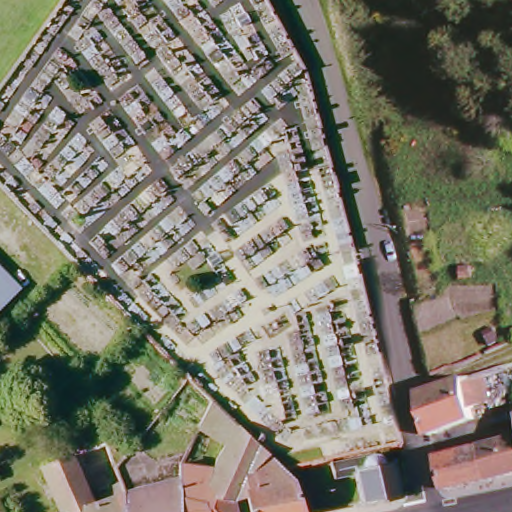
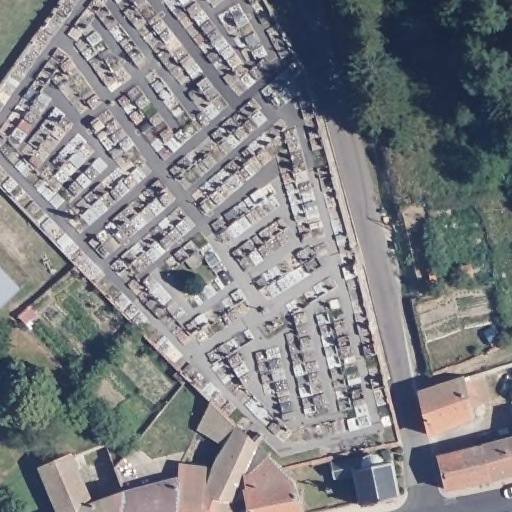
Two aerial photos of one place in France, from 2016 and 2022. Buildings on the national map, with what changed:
unchanged [(0,311),(0,273),(19,293),(0,311)]
unchanged [(482,397),(465,405),(468,415),(424,430),(413,388),(476,368),(482,397)]
unchanged [(304,511),(304,512),(247,512),(242,493),(228,494),(211,495),(209,463),(225,433),(200,409),(207,394),(233,419),(290,477),(304,511)]
unchanged [(484,485),(476,453),(512,446),(512,477),(484,485)]
unchanged [(58,509),(35,460),(64,448),(87,497),(68,504),(70,512),(49,512),(58,509)]
unchanged [(484,485),(439,493),(431,463),(476,453),(484,485)]
unchanged [(402,504),(364,512),(363,508),(357,481),(335,484),(331,469),(382,461),(397,470),(402,504)]
unchanged [(211,501),(175,506),(174,472),(209,463),(211,495),(228,494),(234,512),(211,512),(211,501)]
unchanged [(174,472),(175,506),(174,512),(120,512),(119,486),(174,472)]
unchanged [(68,504),(87,497),(119,486),(120,512),(70,512),(68,504)]
unchanged [(175,506),(211,501),(211,512),(174,512),(175,506)]

